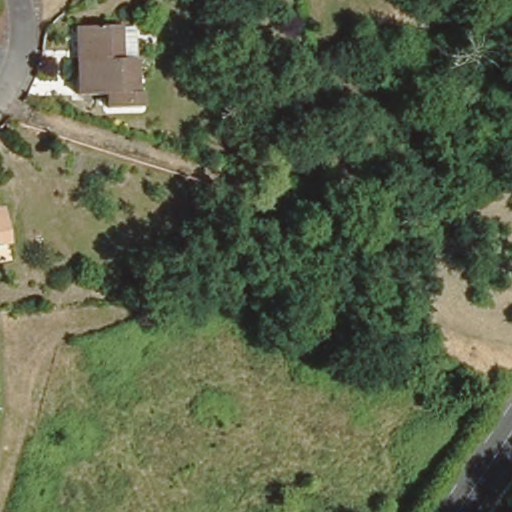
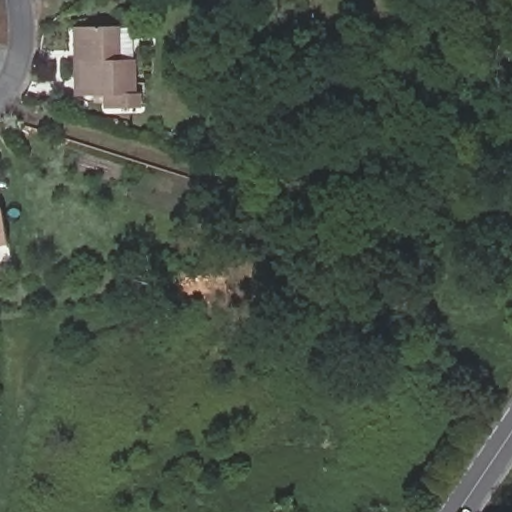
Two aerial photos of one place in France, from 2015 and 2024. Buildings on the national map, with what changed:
unchanged [(125,25),(139,25),(140,56),(139,91),(145,91),(145,106),(114,105),(113,91),(84,91),(84,25),(125,25)]
unchanged [(0,237),(0,219),(3,236),(0,237)]

